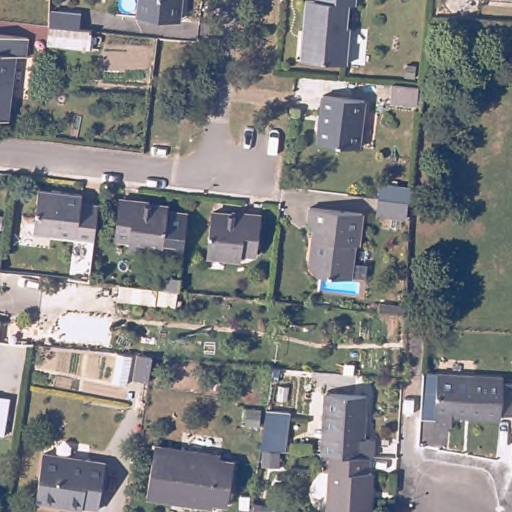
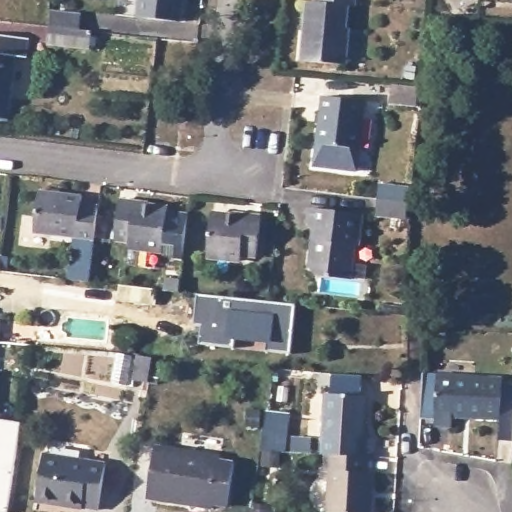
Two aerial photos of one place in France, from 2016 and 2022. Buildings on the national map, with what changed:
unchanged [(179,16),(141,11),(142,0),(181,0),(179,16)]
unchanged [(304,31),(301,29),(304,0),(311,0),(355,0),(354,6),(348,5),(342,65),(301,60),(304,31)]
unchanged [(48,26),(49,11),(80,15),(78,30),(91,31),(88,49),(46,43),(48,26)]
unchanged [(8,124),(0,123),(0,35),(28,38),(26,59),(16,57),(8,124)]
unchanged [(422,90),(420,109),(394,106),(396,87),(422,90)]
unchanged [(323,95),(364,101),(357,147),(317,141),(323,95)]
unchanged [(380,215),(382,198),(383,186),(396,187),(413,189),(411,202),(410,219),(380,215)]
unchanged [(42,215),(45,188),(86,194),(85,204),(102,207),(98,237),(56,233),(40,231),(42,215)]
unchanged [(161,254),(161,251),(130,247),(130,239),(115,237),(120,197),(136,200),(135,202),(158,206),(166,206),(166,212),(187,214),(182,257),(161,254)]
unchanged [(316,236),(319,236),(320,228),(315,223),(317,207),(369,214),(366,245),(361,245),(357,279),(321,275),(313,263),(316,236)]
unchanged [(217,212),(247,216),(247,213),(265,215),(261,255),(246,252),(245,261),(212,256),(217,212)]
unchanged [(164,292),(165,281),(179,282),(178,293),(176,293),(175,309),(116,302),(118,287),(164,292)]
new [(197,292),(295,304),(290,353),(266,350),(267,342),(231,338),(232,347),(200,342),(202,326),(195,325),(197,292)]
unchanged [(381,307),(404,310),(404,317),(380,315),(381,307)]
unchanged [(135,358),(150,360),(146,386),(131,383),(135,358)]
unchanged [(506,416),(457,413),(457,423),(441,422),(444,375),(444,371),(509,376),(509,380),(506,416)]
unchanged [(325,392),(367,393),(365,435),(376,436),(375,455),(369,455),(327,453),(323,453),(325,392)]
unchanged [(287,418),(281,457),(259,456),(265,415),(287,418)]
new [(0,511),(0,418),(20,422),(6,512),(0,511)]
unchanged [(158,440),(223,448),(223,453),(236,455),(229,500),(216,497),(215,502),(150,492),(158,440)]
unchanged [(43,452),(104,462),(97,508),(83,507),(82,509),(61,506),(61,499),(36,496),(43,452)]
unchanged [(369,470),(375,470),(373,512),(331,512),(332,469),(327,469),(327,453),(369,455),(369,470)]

